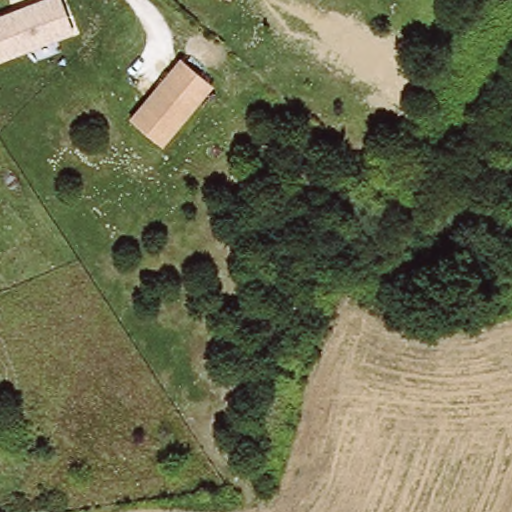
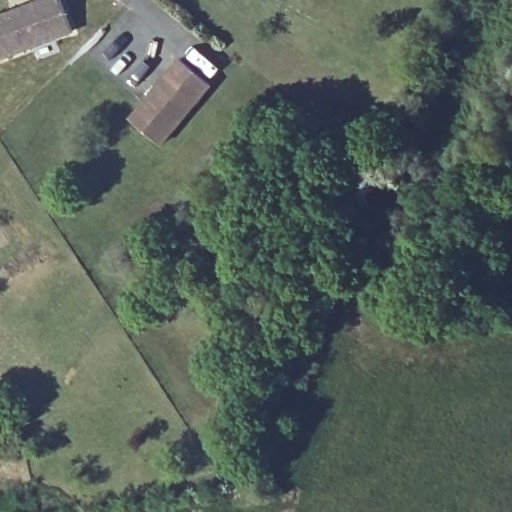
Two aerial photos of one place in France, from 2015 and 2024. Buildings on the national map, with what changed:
unchanged [(60,0),(72,33),(0,61),(0,16),(42,0),(60,0)]
unchanged [(226,0),(229,0),(229,1),(226,0)]
unchanged [(129,119),(182,58),(215,86),(166,148),(129,119)]

